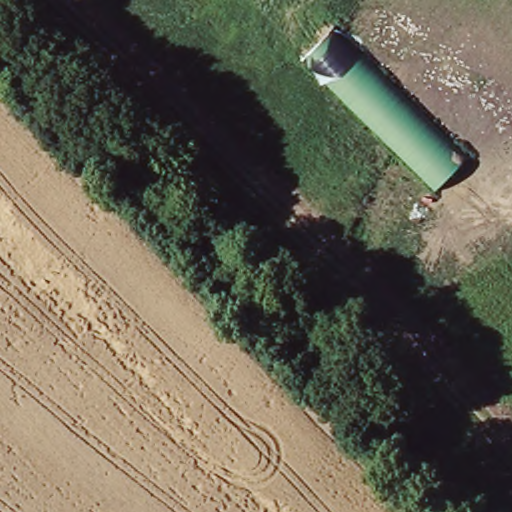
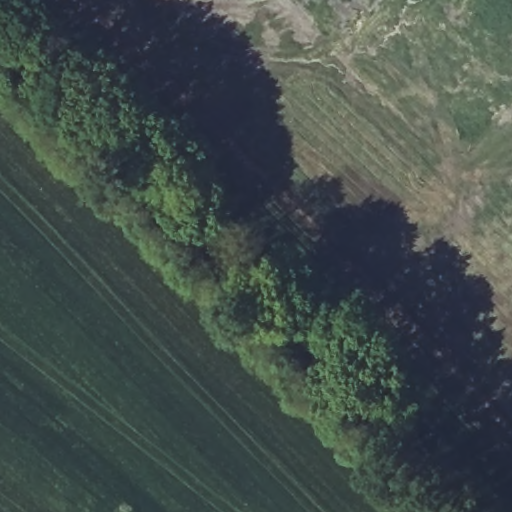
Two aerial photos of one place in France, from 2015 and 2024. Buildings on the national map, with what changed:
demolished [(467,157),(435,190),(303,60),(333,25),(467,157)]

